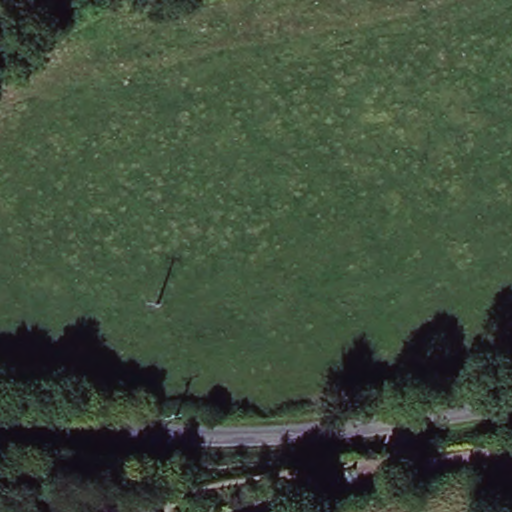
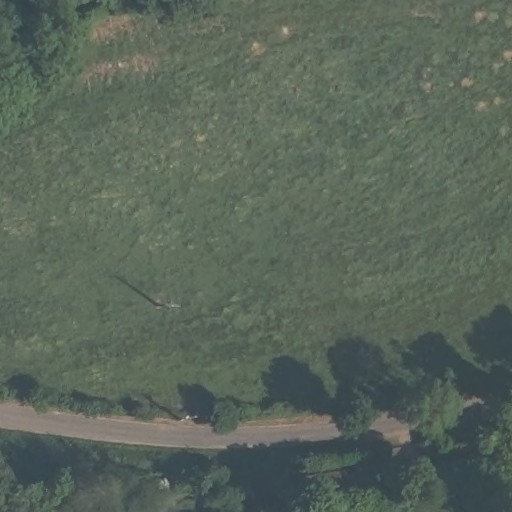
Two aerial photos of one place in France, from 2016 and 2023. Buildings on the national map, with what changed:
unchanged [(356,474),(360,490),(328,495),(326,481),(356,474)]
unchanged [(156,507),(157,512),(142,512),(156,507)]

